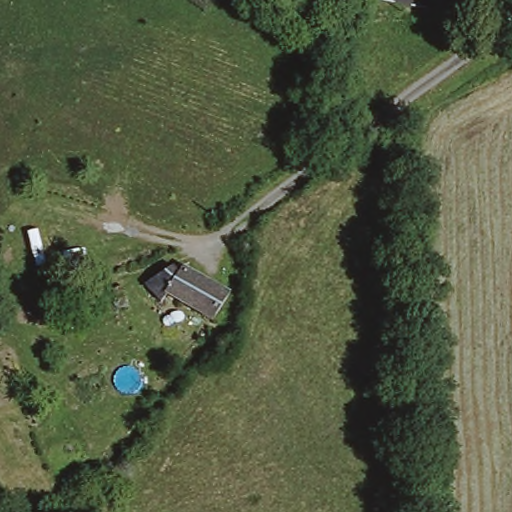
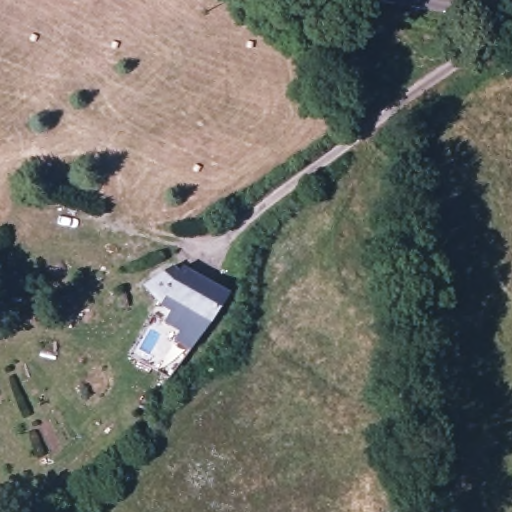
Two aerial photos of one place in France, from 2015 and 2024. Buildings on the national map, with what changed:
unchanged [(244,300),(224,330),(214,322),(205,316),(200,313),(195,310),(192,308),(179,298),(172,308),(162,285),(186,274),(192,279),(200,267),(244,300)]
unchanged [(158,306),(129,311),(127,298),(157,288),(158,306)]

